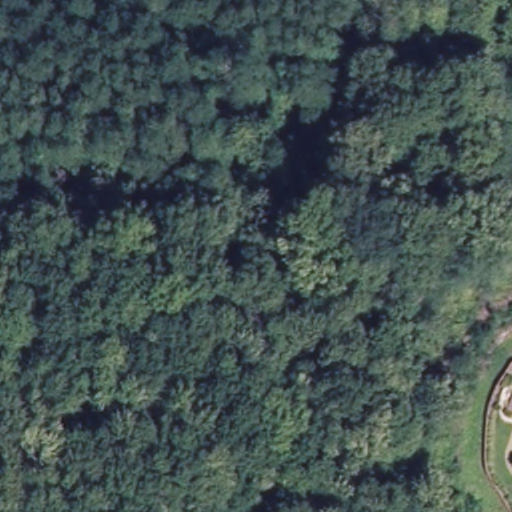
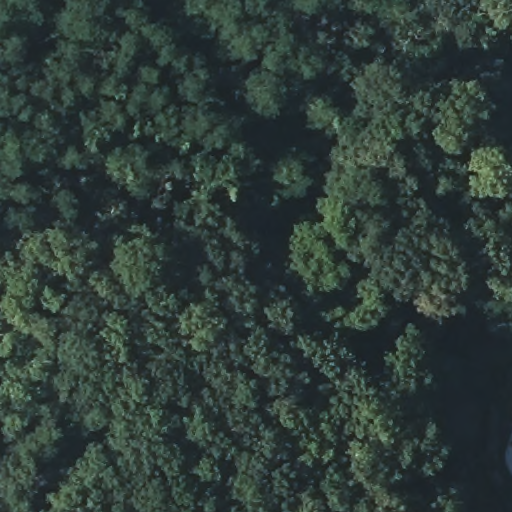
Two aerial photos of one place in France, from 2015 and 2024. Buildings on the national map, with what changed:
unchanged [(512,397),(512,413),(507,412),(512,397)]

